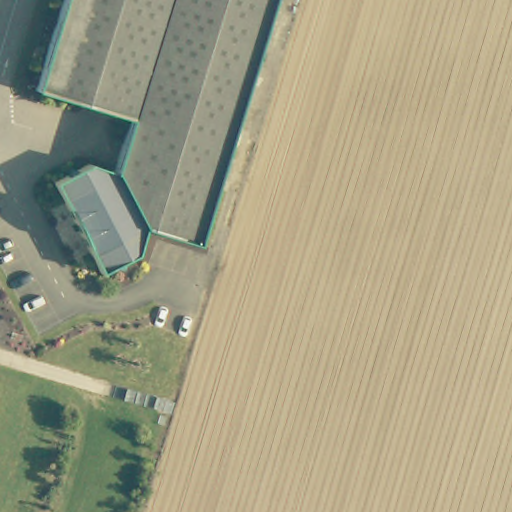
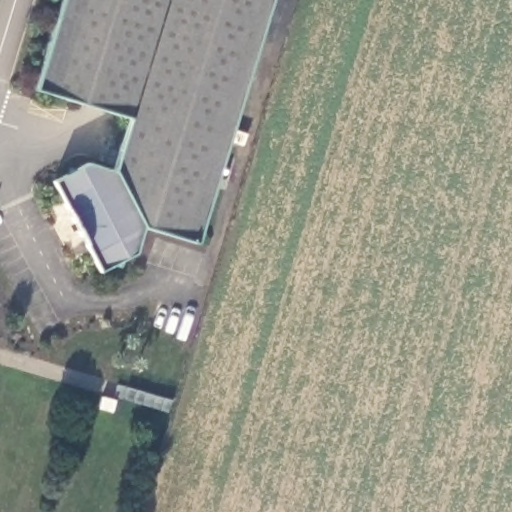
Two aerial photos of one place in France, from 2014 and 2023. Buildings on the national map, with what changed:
unchanged [(61,0),(270,0),(259,34),(224,145),(126,120),(33,90),(61,0)]
unchanged [(224,145),(193,242),(139,226),(133,247),(133,251),(121,256),(119,265),(112,263),(97,270),(59,199),(50,181),(83,165),(116,151),(126,120),(224,145)]

